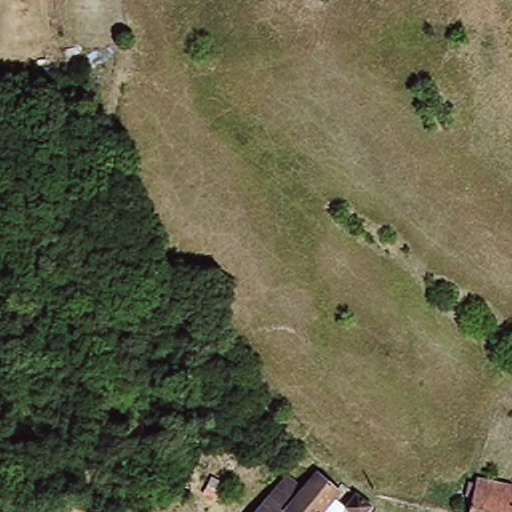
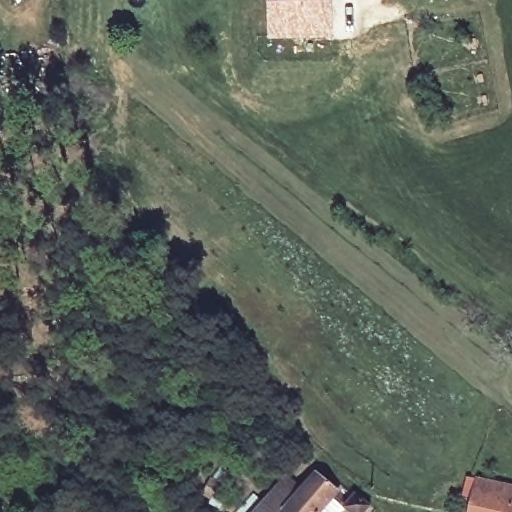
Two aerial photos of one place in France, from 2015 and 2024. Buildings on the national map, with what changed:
new [(304,7),(304,0),(322,0),(323,6),(330,6),(331,40),(271,41),(269,8),(304,7)]
unchanged [(304,485),(319,468),(346,490),(328,512),(253,512),(288,471),(304,485)]
unchanged [(512,512),(474,512),(479,485),(512,493),(512,512)]

